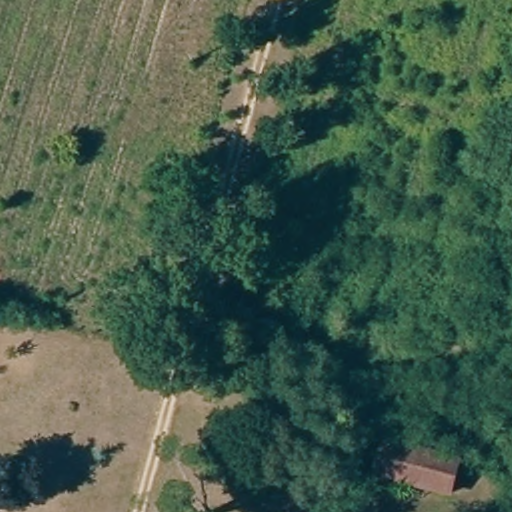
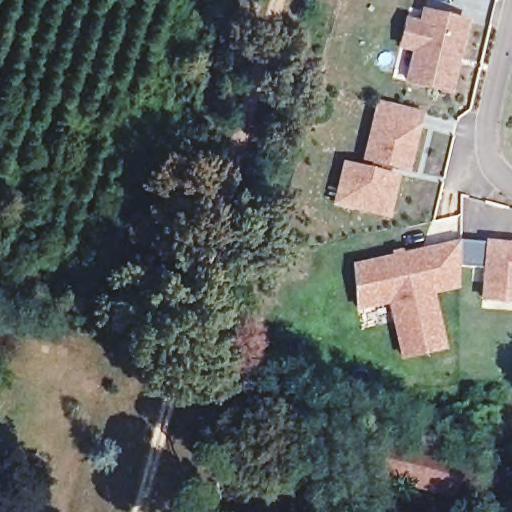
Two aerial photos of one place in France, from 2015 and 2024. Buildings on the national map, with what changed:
new [(448,92),(406,82),(414,50),(399,47),(405,22),(420,25),(423,12),(465,22),(457,54),(454,66),(448,92)]
new [(343,165),(368,171),(370,161),(363,159),(373,116),(377,101),(420,111),(416,126),(406,169),(389,165),(386,175),(395,177),(386,216),(355,208),(334,203),(337,191),(343,165)]
new [(351,263),(391,254),(390,251),(401,248),(402,251),(460,239),(485,241),(485,239),(512,242),(512,303),(501,302),(479,299),(483,265),(459,262),(458,288),(434,292),(445,347),(421,354),(399,358),(388,301),(355,310),(351,263)]
unchanged [(385,442),(455,461),(446,494),(376,475),(385,442)]

